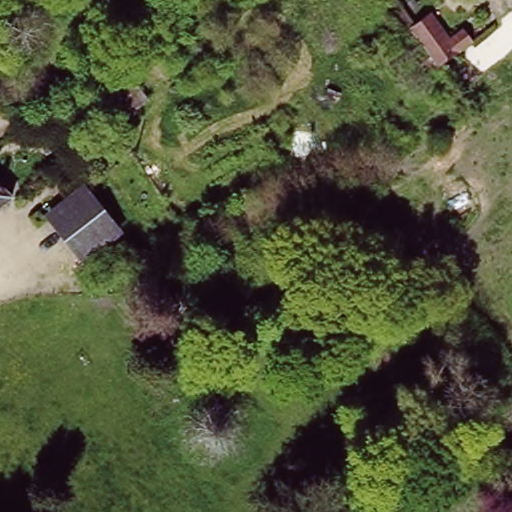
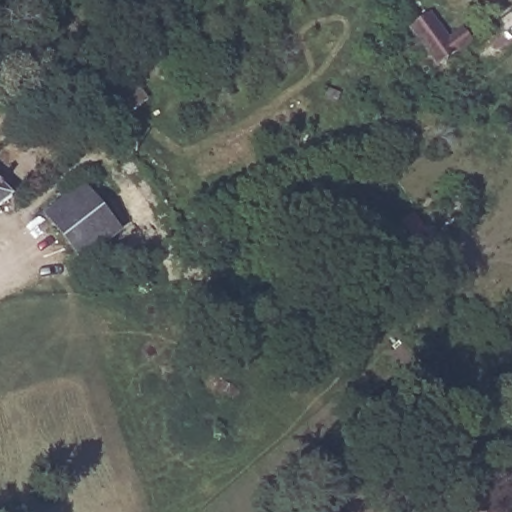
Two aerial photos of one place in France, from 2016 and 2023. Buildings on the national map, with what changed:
unchanged [(428,55),(411,31),(407,26),(430,12),(448,37),(463,27),(472,39),(436,65),(428,55)]
unchanged [(428,55),(397,76),(381,55),(411,31),(428,55)]
unchanged [(120,126),(97,94),(126,71),(152,100),(120,126)]
unchanged [(12,191),(0,201),(0,177),(12,191)]
unchanged [(82,187),(115,232),(79,260),(44,215),(82,187)]

